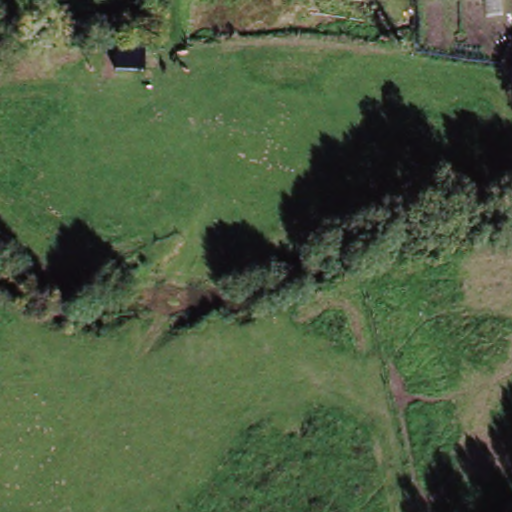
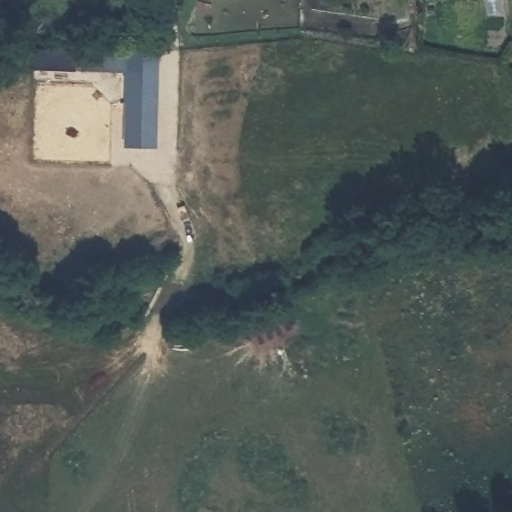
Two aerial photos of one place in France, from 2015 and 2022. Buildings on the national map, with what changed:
new [(158,50),(157,147),(125,147),(125,72),(77,71),(77,48),(158,50)]

